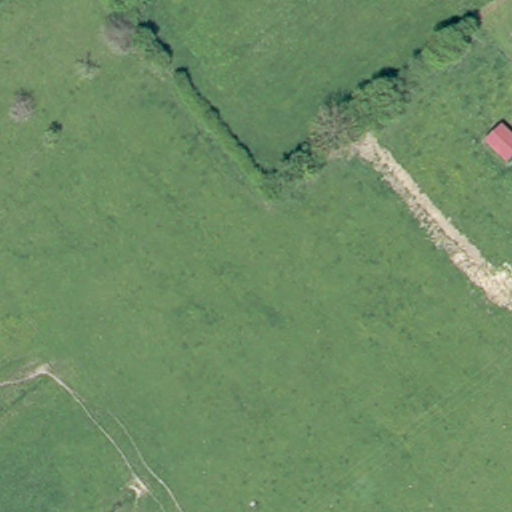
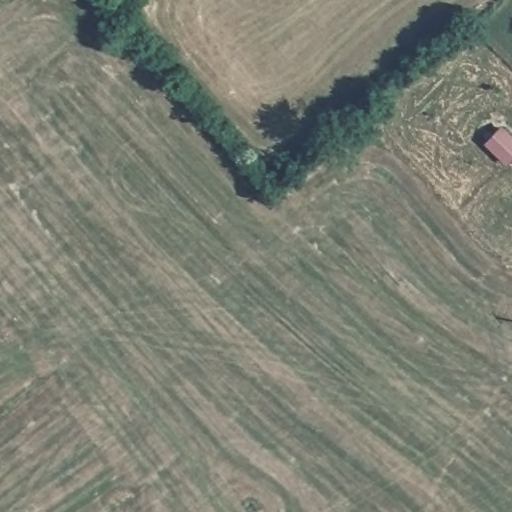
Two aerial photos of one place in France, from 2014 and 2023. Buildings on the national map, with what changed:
unchanged [(512,157),(507,162),(486,141),(500,126),(512,138),(512,157)]

